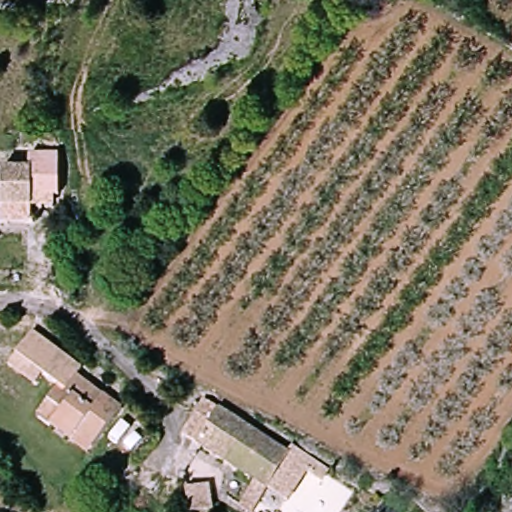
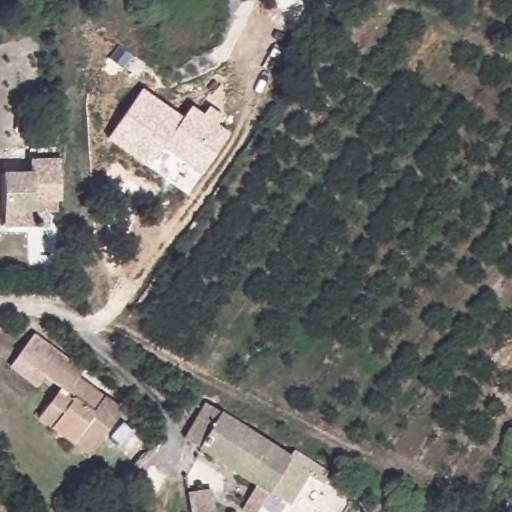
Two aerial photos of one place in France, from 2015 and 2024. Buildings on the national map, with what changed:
new [(182,118),(191,105),(203,114),(209,107),(222,116),(217,125),(230,134),(202,174),(162,147),(148,168),(107,139),(143,88),(182,118)]
unchanged [(0,175),(39,175),(39,190),(57,190),(57,211),(38,210),(38,226),(0,226),(0,175)]
unchanged [(72,445),(50,428),(38,418),(49,404),(60,390),(45,377),(37,386),(11,366),(18,356),(35,335),(83,373),(78,380),(122,414),(92,452),(87,458),(72,445)]
unchanged [(294,444),(304,450),(331,464),(325,476),(310,468),(291,498),(271,488),(259,512),(253,512),(244,508),(253,489),(257,481),(188,445),(181,442),(186,434),(202,405),(290,451),(294,444)]

